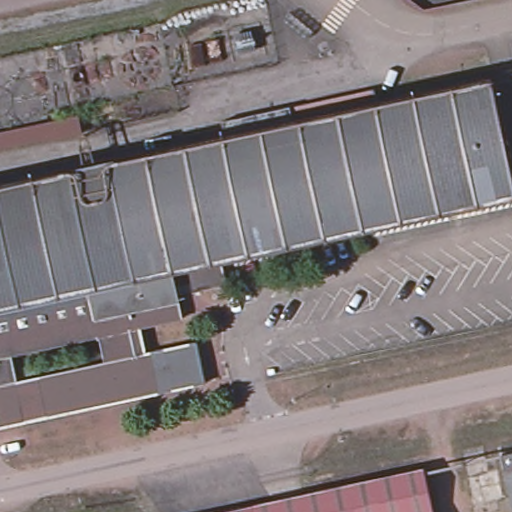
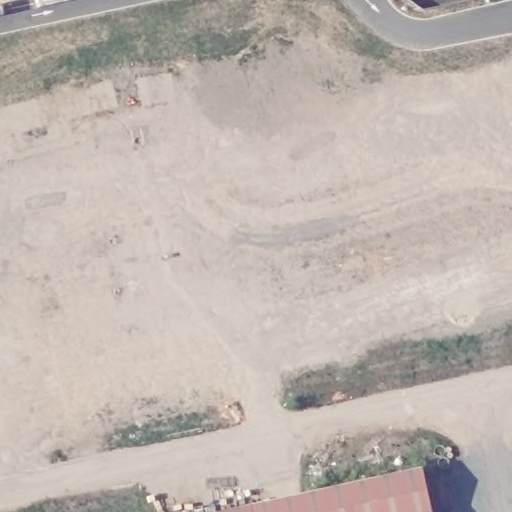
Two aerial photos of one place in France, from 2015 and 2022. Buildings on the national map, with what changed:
demolished [(512,159),(512,198),(177,275),(199,384),(0,429),(0,184),(491,77),(512,159)]
demolished [(502,452),(512,450),(512,496),(502,452)]
unchanged [(435,512),(212,512),(425,466),(435,512)]

